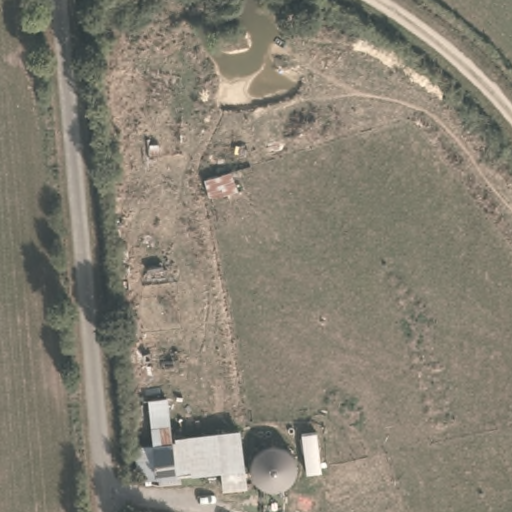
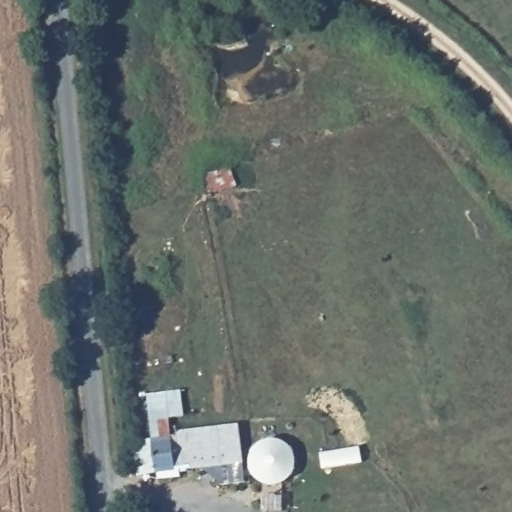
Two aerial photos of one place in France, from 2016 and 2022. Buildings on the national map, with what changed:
unchanged [(207,196),(202,177),(231,169),(237,187),(207,196)]
unchanged [(143,396),(167,394),(171,439),(148,443),(143,396)]
unchanged [(244,463),(143,476),(139,444),(239,430),(244,463)]
unchanged [(296,469),(294,479),(283,487),(268,489),(257,484),(250,473),(251,456),(257,446),(265,440),(279,441),(290,448),(294,456),(296,469)]

